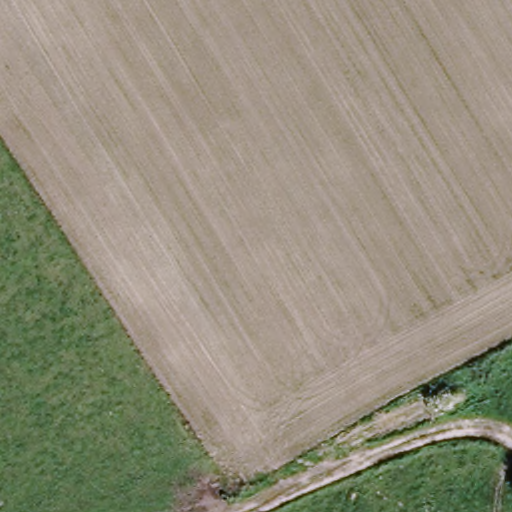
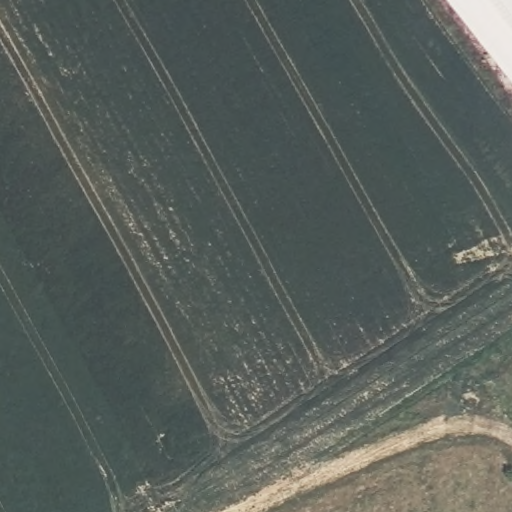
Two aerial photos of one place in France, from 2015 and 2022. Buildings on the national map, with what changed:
new [(447,0),(512,0),(512,83),(447,0)]

